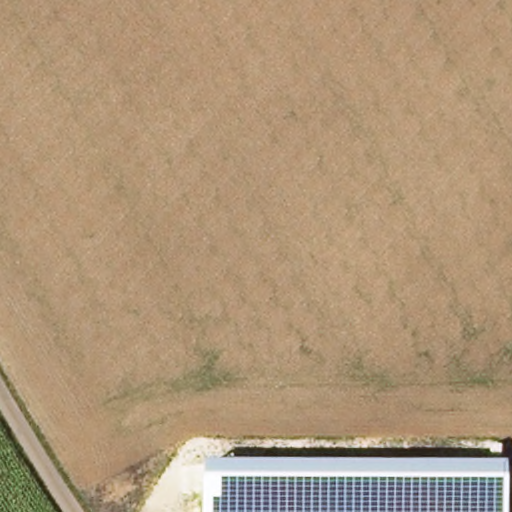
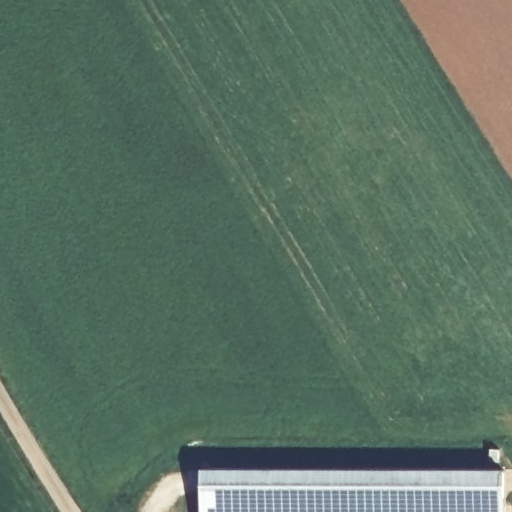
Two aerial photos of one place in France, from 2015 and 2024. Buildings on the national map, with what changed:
unchanged [(203,512),(204,469),(507,467),(506,512),(203,512)]

